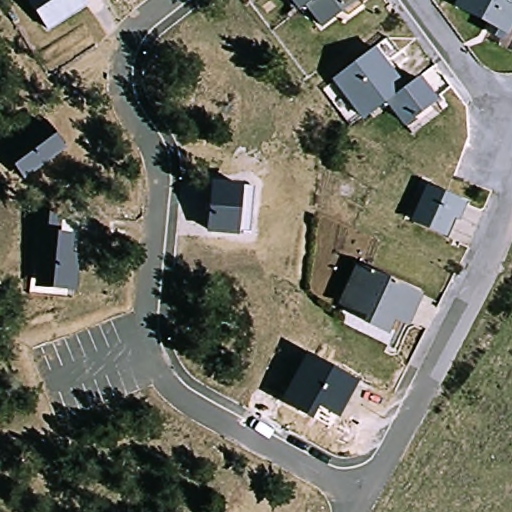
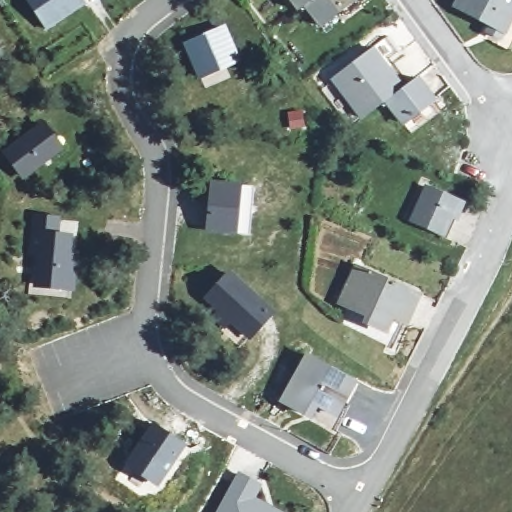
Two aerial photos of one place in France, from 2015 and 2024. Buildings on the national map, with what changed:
unchanged [(85,0),(88,5),(47,31),(27,0),(85,0)]
unchanged [(306,7),(298,11),(289,0),(358,0),(321,26),(306,7)]
unchanged [(451,9),(455,0),(512,0),(512,27),(509,35),(451,9)]
new [(183,44),(225,25),(242,62),(199,81),(183,44)]
unchanged [(362,120),(331,80),(376,46),(406,87),(383,104),(362,120)]
unchanged [(440,99),(405,127),(383,104),(420,76),(440,99)]
unchanged [(4,153),(47,122),(68,149),(25,181),(4,153)]
unchanged [(238,236),(207,232),(212,182),(243,186),(255,187),(251,233),(238,236)]
unchanged [(468,204),(459,223),(452,221),(445,235),(408,221),(423,184),(468,204)]
unchanged [(34,287),(35,279),(31,278),(39,215),(62,217),(61,232),(73,235),(73,252),(80,254),(77,292),(34,287)]
unchanged [(424,295),(408,327),(394,322),(390,333),(340,308),(360,266),(424,295)]
new [(230,270),(276,312),(250,341),(203,299),(230,270)]
unchanged [(339,418),(319,407),(312,420),(280,402),(307,355),(359,382),(339,418)]
new [(171,469),(158,488),(123,465),(153,422),(186,446),(183,451),(188,454),(176,472),(171,469)]
new [(263,485),(256,497),(282,512),(216,512),(238,472),(263,485)]

